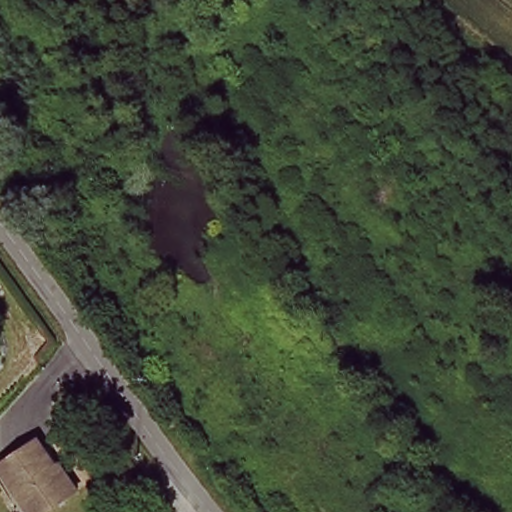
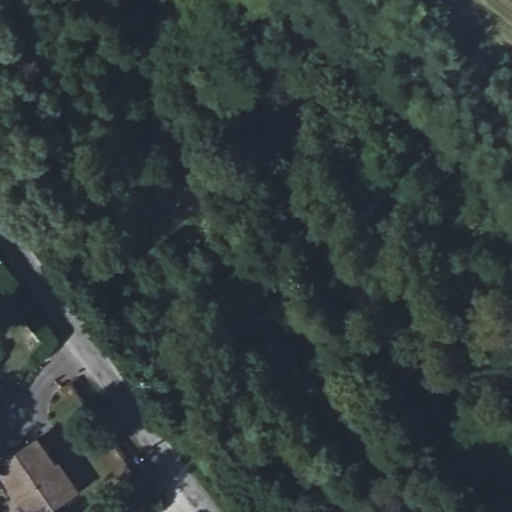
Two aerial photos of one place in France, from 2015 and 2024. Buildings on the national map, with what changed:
unchanged [(70,497),(49,512),(32,512),(3,468),(41,441),(59,468),(63,465),(80,490),(70,497)]

